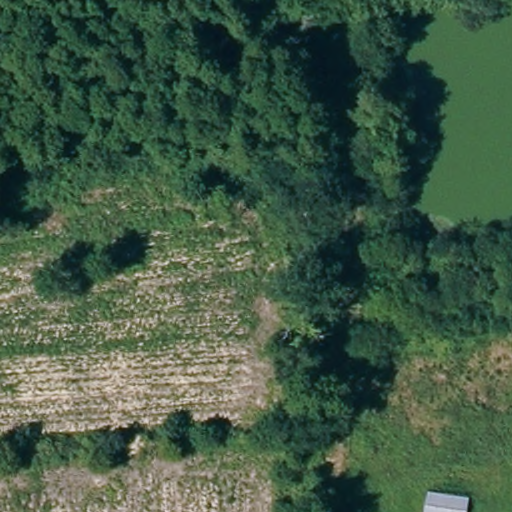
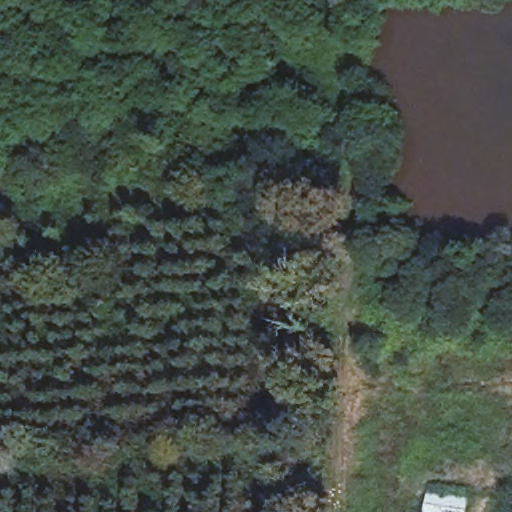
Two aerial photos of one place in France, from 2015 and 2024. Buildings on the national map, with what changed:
unchanged [(470,512),(425,512),(428,491),(472,497),(470,512)]

